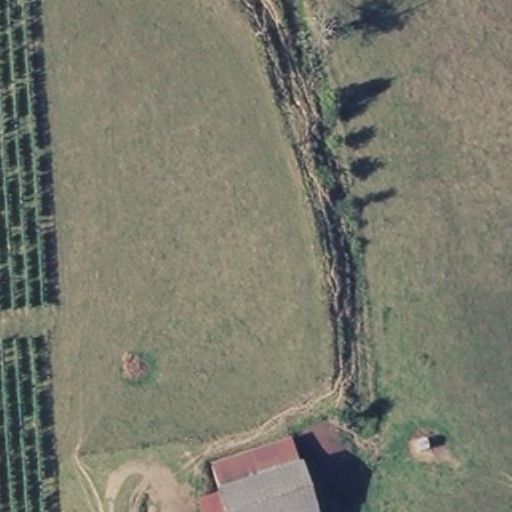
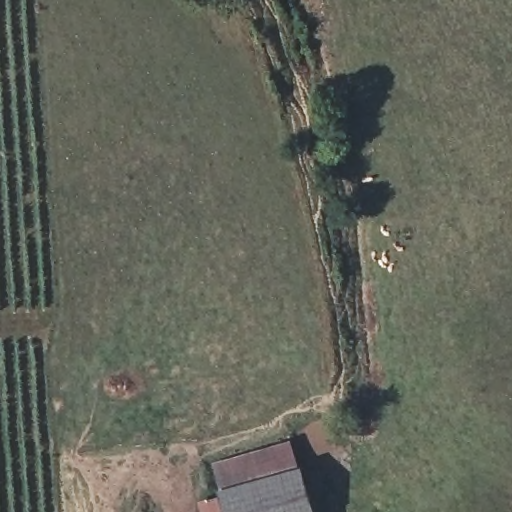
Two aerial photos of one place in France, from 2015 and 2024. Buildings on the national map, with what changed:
unchanged [(300,471),(229,493),(222,470),(221,465),(292,441),(294,450),(300,471)]
unchanged [(312,512),(285,512),(285,511),(281,512),(206,512),(204,502),(222,496),(223,495),(229,493),(300,471),(312,512)]

